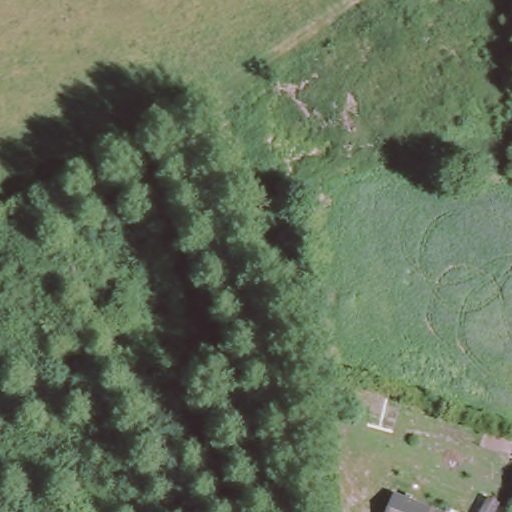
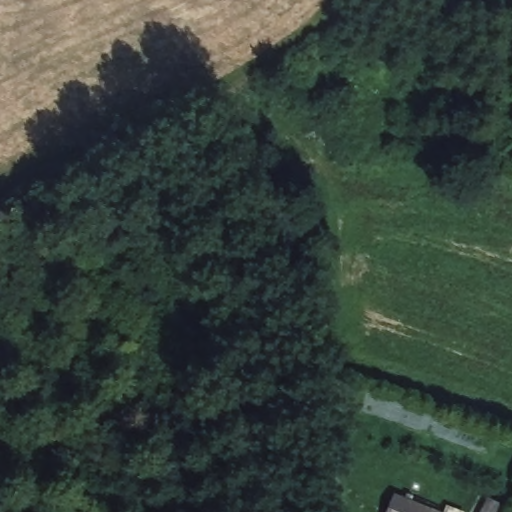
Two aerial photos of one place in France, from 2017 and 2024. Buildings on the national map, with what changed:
unchanged [(430,512),(385,512),(391,498),(430,512)]

